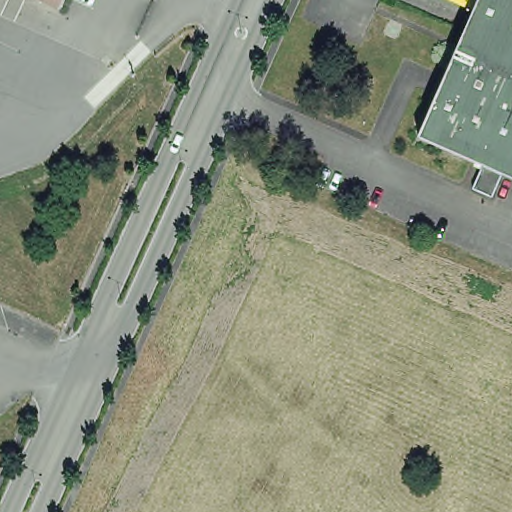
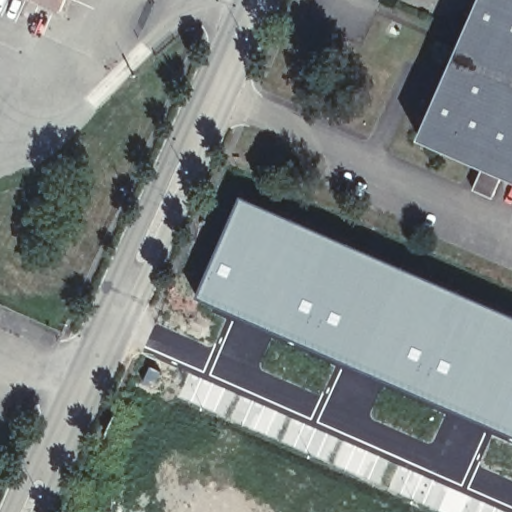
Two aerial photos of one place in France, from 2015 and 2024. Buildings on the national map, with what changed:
unchanged [(56,3),(50,0),(58,0),(56,3)]
unchanged [(468,185),(478,163),(414,135),(474,0),(512,0),(512,178),(497,171),(487,194),(468,185)]
new [(408,266),(512,312),(512,436),(361,370),(197,295),(241,195),(408,266)]

